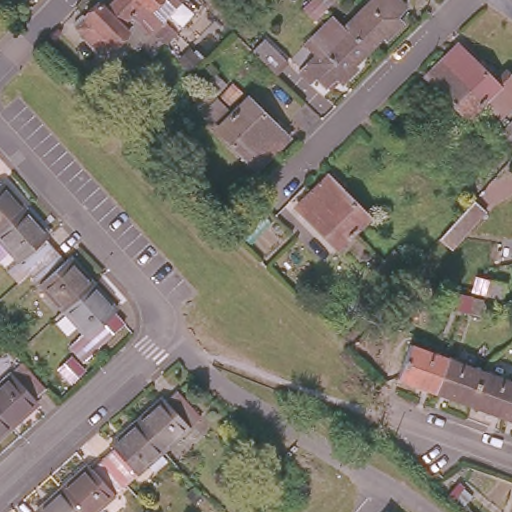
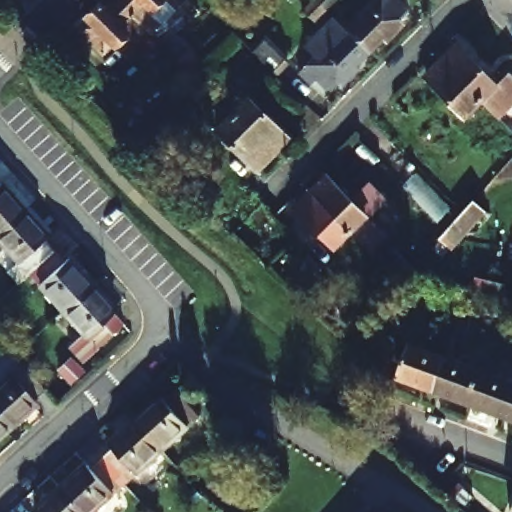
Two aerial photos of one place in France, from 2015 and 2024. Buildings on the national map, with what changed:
unchanged [(161,40),(151,51),(139,41),(136,45),(120,30),(111,40),(109,37),(100,47),(74,21),(83,11),(82,10),(92,0),(101,0),(102,0),(120,0),(161,40)]
unchanged [(120,0),(148,0),(151,2),(148,4),(162,16),(163,15),(175,26),(161,40),(120,0)]
unchanged [(172,1),(171,0),(173,0),(172,1)]
unchanged [(345,20),(365,0),(406,0),(397,10),(402,16),(387,31),(384,29),(370,44),(345,20)]
unchanged [(355,57),(359,61),(342,77),(336,71),(327,80),(317,70),(311,76),(300,65),(317,47),(306,35),(333,7),(345,20),(370,44),(355,57)]
unchanged [(289,61),(277,74),(253,50),(265,37),(289,61)]
unchanged [(439,59),(455,44),(496,85),(508,72),(512,76),(512,107),(499,120),(480,100),(439,59)]
unchanged [(480,100),(464,115),(424,75),(439,59),(480,100)]
unchanged [(249,96),(289,136),(273,151),(234,111),(249,96)]
unchanged [(257,167),(219,127),(234,111),(273,151),(257,167)]
unchanged [(327,175),(368,216),(354,231),(312,190),(327,175)]
unchanged [(28,208),(0,233),(0,184),(3,181),(28,208)]
unchanged [(354,231),(337,247),(297,205),(312,190),(354,231)]
unchanged [(475,199),(487,211),(455,247),(439,236),(475,199)]
unchanged [(47,236),(57,248),(31,272),(21,261),(0,239),(0,233),(28,208),(51,233),(47,236)]
unchanged [(68,260),(72,256),(96,283),(66,310),(42,283),(31,272),(57,248),(68,260)]
unchanged [(489,280),(484,293),(478,292),(474,290),(479,276),(483,278),(489,280)]
unchanged [(119,308),(116,310),(129,325),(108,344),(102,350),(90,335),(66,310),(96,283),(119,308)]
unchanged [(474,297),(469,315),(462,312),(457,311),(461,295),(468,296),(474,297)]
unchanged [(399,378),(410,345),(447,359),(435,391),(399,378)]
unchanged [(435,391),(447,359),(482,372),(474,393),(470,405),(435,391)]
unchanged [(0,385),(15,371),(26,361),(48,385),(37,395),(40,399),(13,423),(0,409),(0,385)]
unchanged [(505,418),(470,405),(474,393),(482,372),(512,383),(512,398),(505,418)]
unchanged [(167,392),(172,396),(182,386),(206,411),(194,422),(165,447),(139,418),(167,392)]
unchanged [(505,418),(512,398),(512,421),(505,418)]
unchanged [(0,409),(13,423),(0,435),(0,409)]
unchanged [(165,447),(140,470),(127,481),(104,456),(117,444),(114,441),(139,418),(165,447)]
unchanged [(93,512),(88,512),(65,487),(92,462),(95,465),(104,456),(127,481),(117,490),(93,512)]
unchanged [(465,488),(455,500),(453,498),(450,495),(461,484),(465,488)]
unchanged [(65,487),(88,512),(43,512),(40,509),(65,487)]

